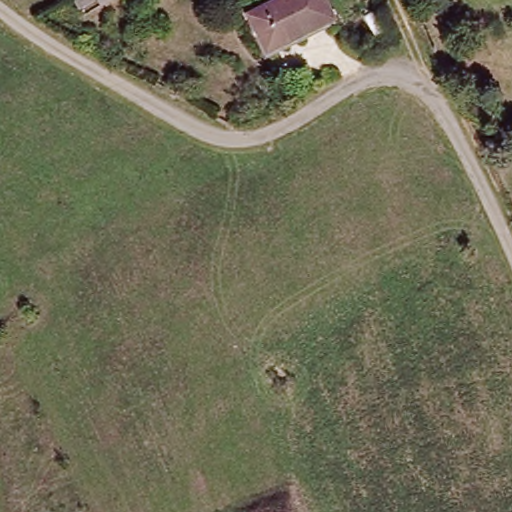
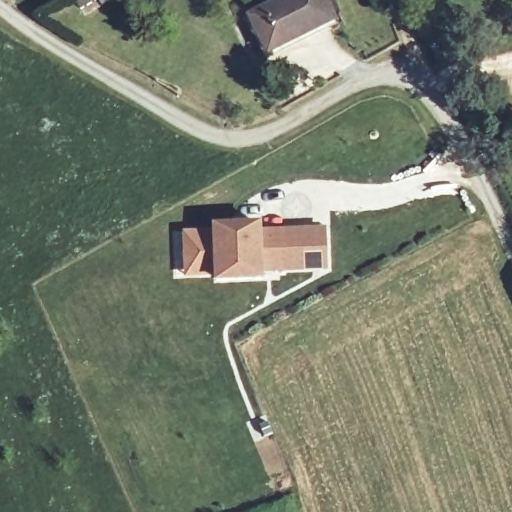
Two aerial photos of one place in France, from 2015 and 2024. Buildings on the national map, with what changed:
new [(79,3),(86,0),(112,0),(85,15),(79,3)]
demolished [(98,18),(92,7),(104,0),(128,0),(98,18)]
unchanged [(267,53),(246,19),(279,0),(317,0),(328,17),(267,53)]
new [(264,224),(265,231),(330,229),(332,269),(267,271),(267,279),(222,281),(222,275),(220,231),(220,226),(264,224)]
new [(220,231),(222,275),(181,276),(180,233),(220,231)]

